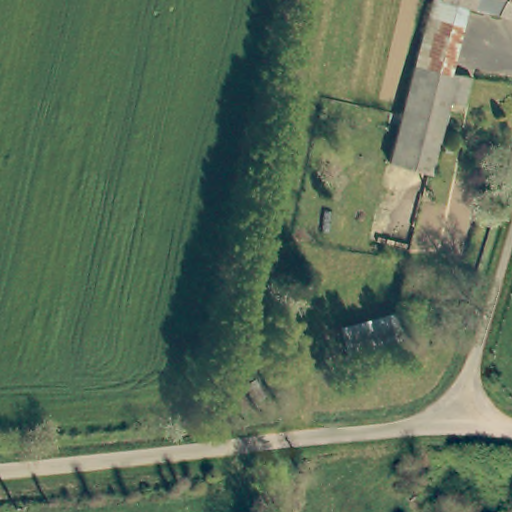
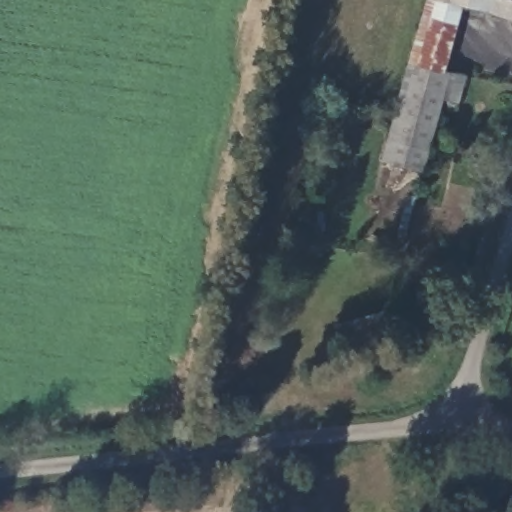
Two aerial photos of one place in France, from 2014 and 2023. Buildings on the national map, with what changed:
unchanged [(447,61),(412,54),(420,16),(424,0),(443,0),(457,3),(447,61)]
unchanged [(512,20),(457,3),(443,0),(512,0),(512,20)]
unchanged [(438,125),(425,169),(420,168),(387,160),(400,113),(410,63),(468,75),(460,102),(446,98),(445,106),(435,104),(432,125),(438,125)]
unchanged [(393,307),(402,335),(345,351),(336,322),(393,307)]

